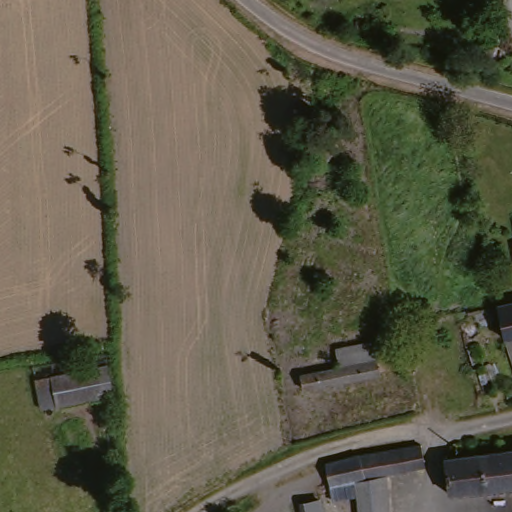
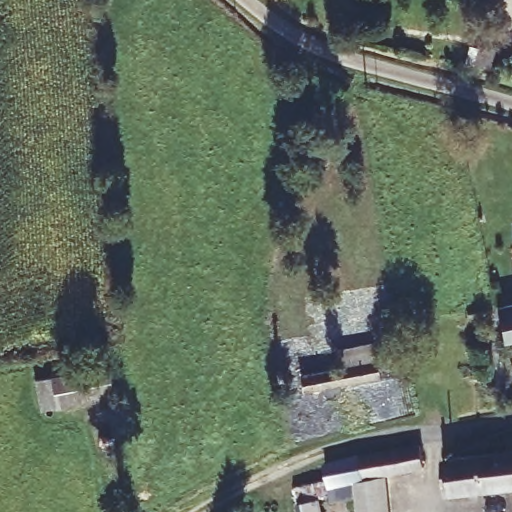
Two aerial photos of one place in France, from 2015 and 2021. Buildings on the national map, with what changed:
unchanged [(308,199),(299,189),(308,180),(300,171),(311,161),(328,181),(308,199)]
unchanged [(512,243),(512,265),(509,244),(512,243)]
unchanged [(512,333),(489,338),(484,308),(512,303),(512,333)]
unchanged [(374,335),(389,335),(390,345),(375,346),(374,335)]
unchanged [(302,383),(301,372),(327,367),(331,367),(333,377),(342,375),(340,364),(376,358),(380,389),(346,395),(305,402),(302,383)]
unchanged [(111,400),(40,412),(33,384),(104,367),(111,400)]
unchanged [(320,486),(318,473),(415,448),(418,467),(377,475),(378,480),(385,512),(355,512),(348,481),(320,486)]
unchanged [(438,460),(512,455),(512,492),(440,496),(438,460)]

